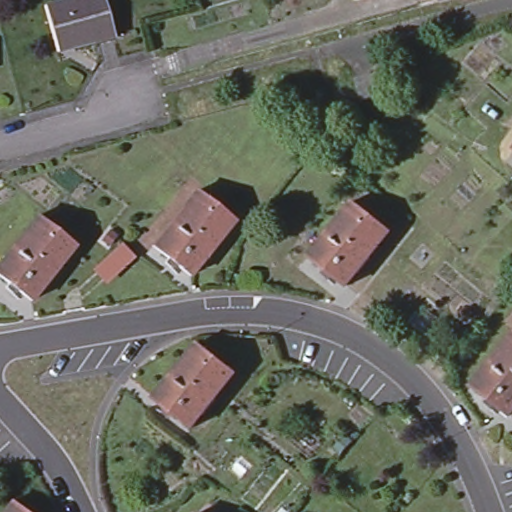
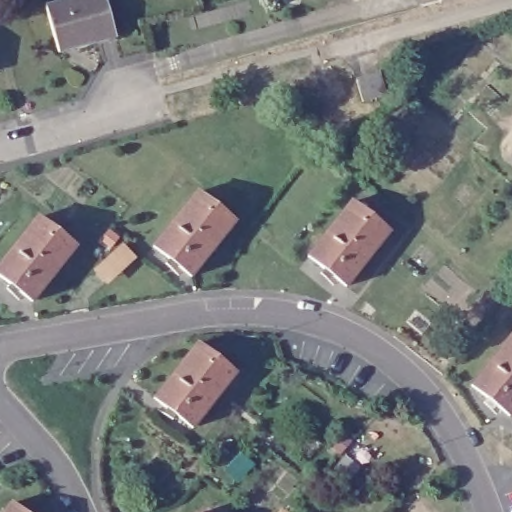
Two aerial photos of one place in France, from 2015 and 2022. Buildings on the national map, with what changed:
unchanged [(59,50),(58,47),(47,5),(47,4),(59,0),(104,0),(113,33),(114,35),(59,50)]
unchanged [(359,0),(361,0),(359,1),(359,0)]
unchanged [(386,92),(360,99),(355,77),(380,71),(386,92)]
unchanged [(234,222),(192,276),(154,246),(197,193),(234,222)]
unchanged [(387,233),(347,286),(310,257),(352,205),(387,233)]
unchanged [(75,247),(32,300),(0,275),(0,264),(37,217),(75,247)]
unchanged [(512,405),(506,413),(469,385),(512,331),(512,405)]
unchanged [(235,374),(192,428),(156,398),(199,345),(235,374)]
unchanged [(32,512),(7,512),(17,500),(32,512)]
unchanged [(198,512),(195,512),(197,511),(198,512)]

